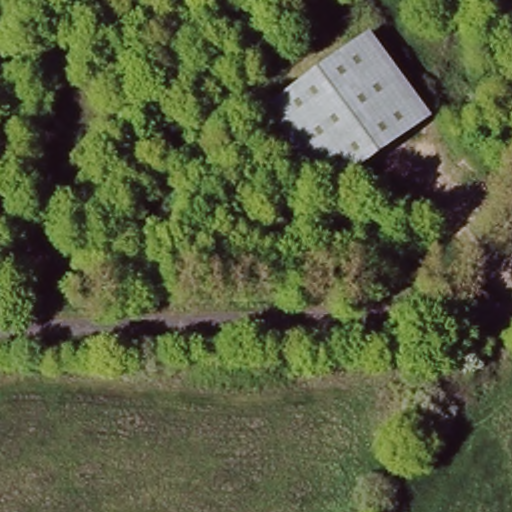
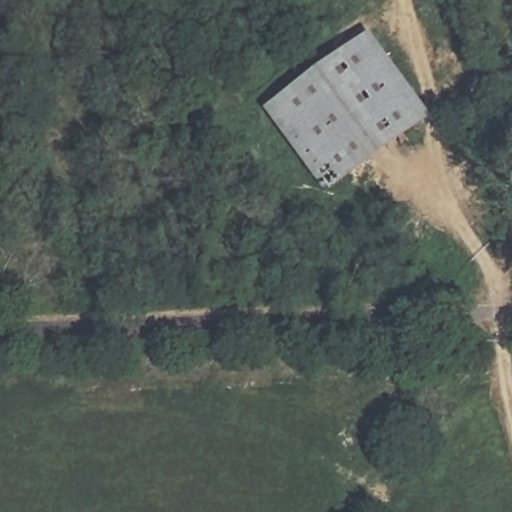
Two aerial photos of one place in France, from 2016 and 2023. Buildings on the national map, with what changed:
unchanged [(330,192),(266,107),(374,29),(434,117),(330,192)]

